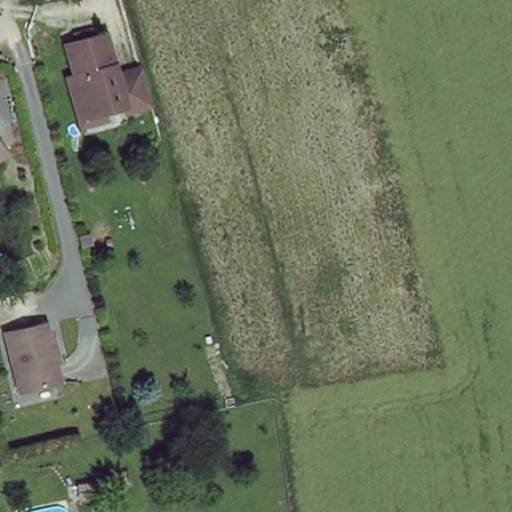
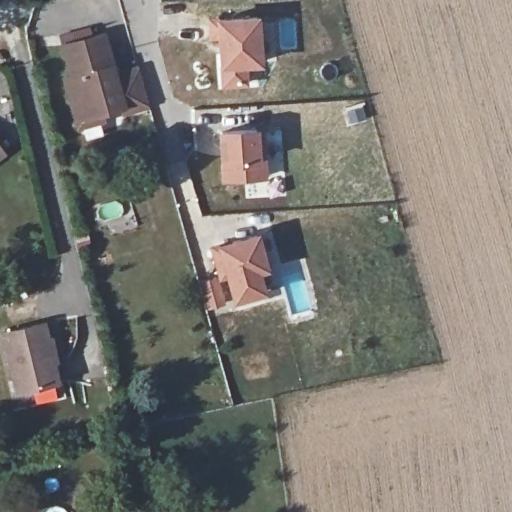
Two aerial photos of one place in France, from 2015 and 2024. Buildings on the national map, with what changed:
new [(257,16),(262,65),(245,65),(245,82),(220,84),(212,20),(257,16)]
unchanged [(63,79),(75,76),(67,45),(110,34),(117,74),(141,68),(155,114),(122,122),(120,114),(101,120),(103,128),(77,135),(70,107),(63,79)]
new [(261,131),(266,178),(225,182),(222,134),(261,131)]
unchanged [(7,155),(0,160),(0,144),(7,155)]
new [(262,273),(267,291),(232,302),(223,274),(217,275),(209,245),(260,232),(271,270),(262,273)]
new [(218,298),(220,303),(205,308),(197,280),(217,275),(223,297),(218,298)]
unchanged [(45,325),(58,383),(20,392),(7,334),(45,325)]

